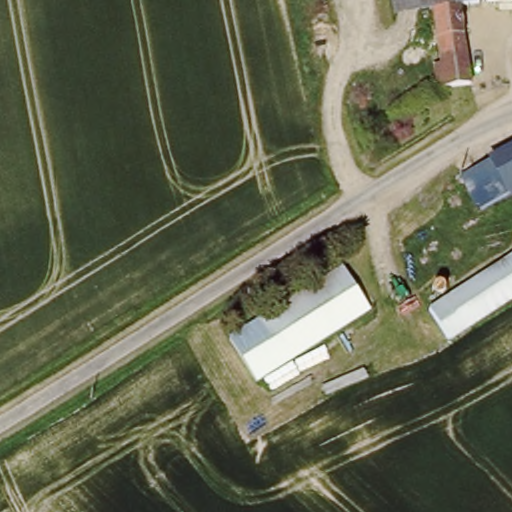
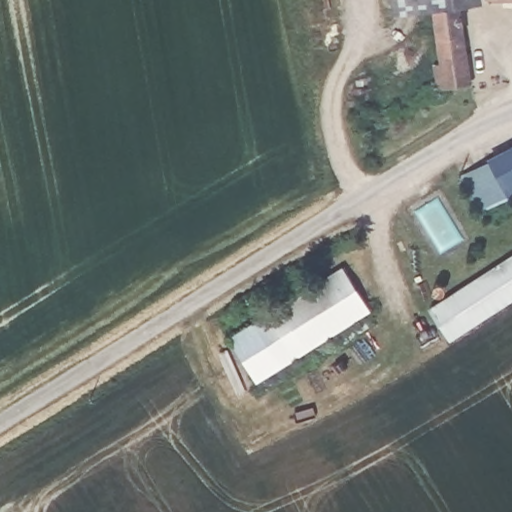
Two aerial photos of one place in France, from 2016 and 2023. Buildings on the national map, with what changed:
unchanged [(390,0),(414,0),(417,13),(393,15),(390,0)]
unchanged [(436,9),(417,13),(414,0),(477,0),(461,4),(436,9)]
unchanged [(461,4),(462,6),(478,81),(479,83),(444,91),(438,63),(434,64),(431,52),(444,49),(436,9),(461,4)]
unchanged [(512,145),(512,198),(508,200),(486,158),(512,145)]
unchanged [(512,254),(512,298),(454,337),(434,307),(512,254)]
unchanged [(341,262),(369,302),(303,348),(261,377),(248,386),(219,346),(229,339),(271,311),(341,262)]

